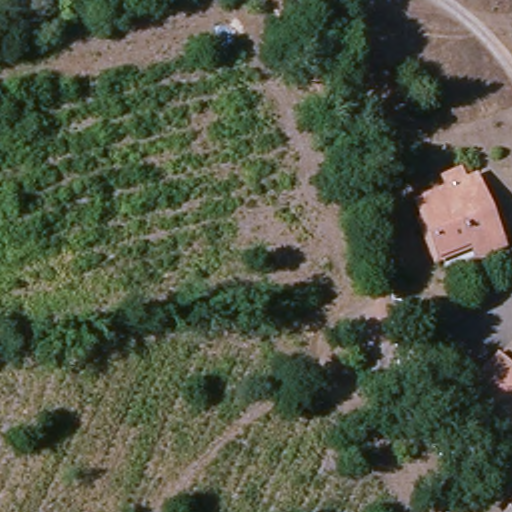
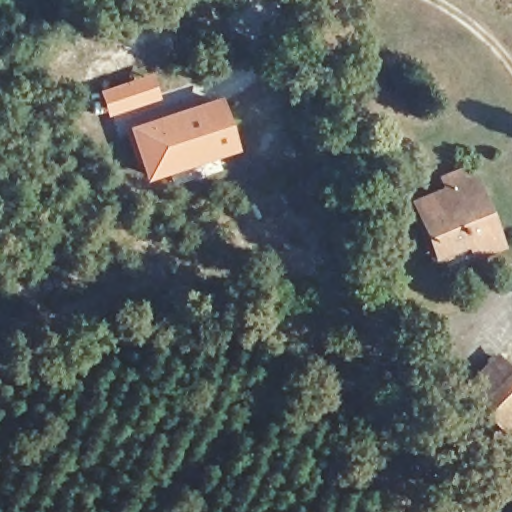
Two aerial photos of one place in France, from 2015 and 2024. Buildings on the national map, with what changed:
new [(240,151),(148,182),(129,128),(220,96),(240,151)]
unchanged [(427,227),(419,209),(434,202),(427,187),(456,177),(462,191),(479,185),(486,204),(469,212),(427,227)]
unchanged [(478,264),(473,249),(441,262),(427,227),(469,212),(482,244),(498,237),(502,246),(505,253),(478,264)]
unchanged [(509,428),(504,424),(482,402),(512,374),(512,424),(509,428)]
unchanged [(512,503),(512,512),(504,512),(512,503)]

